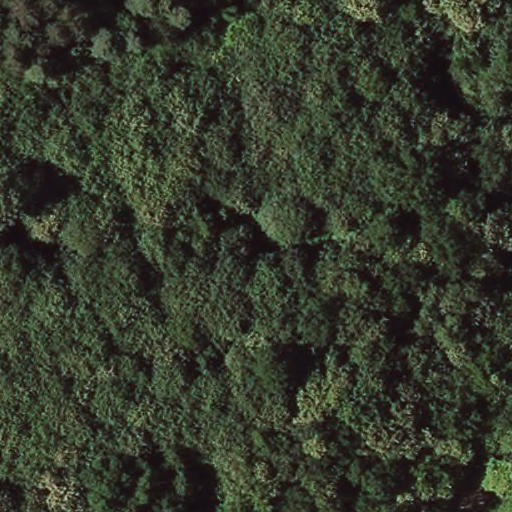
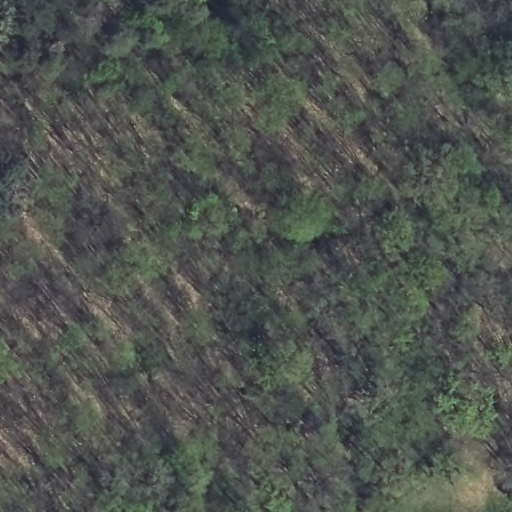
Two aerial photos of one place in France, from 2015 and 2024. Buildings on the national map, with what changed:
unchanged [(491,235),(486,244),(476,239),(482,231),(491,235)]

